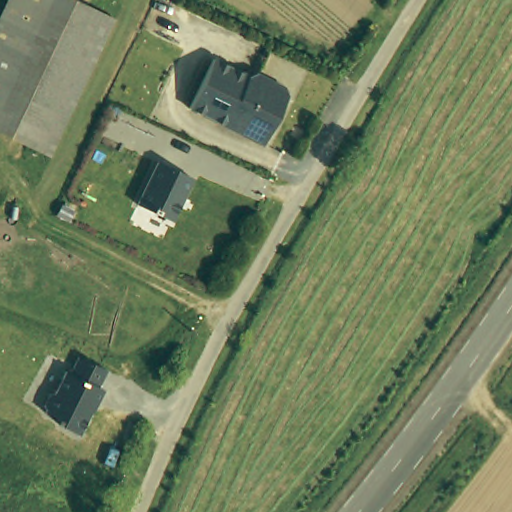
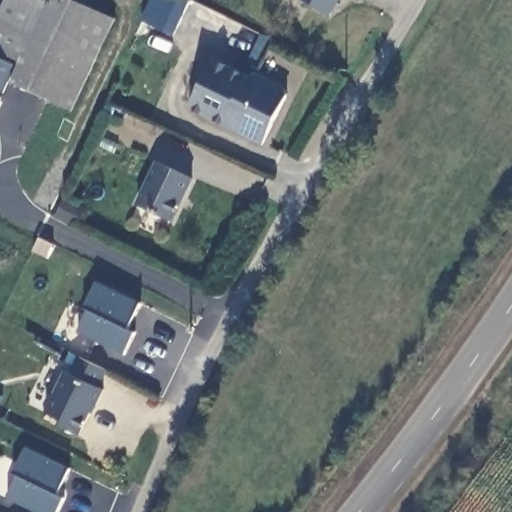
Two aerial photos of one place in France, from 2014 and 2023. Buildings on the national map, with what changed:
unchanged [(118,19),(53,156),(0,128),(0,18),(9,0),(78,0),(118,19)]
new [(332,15),(307,0),(340,0),(332,15)]
unchanged [(212,59),(247,75),(255,72),(284,85),(289,97),(263,146),(190,109),(212,59)]
unchanged [(193,179),(173,221),(136,205),(156,161),(193,179)]
new [(88,310),(84,308),(97,281),(140,302),(127,329),(134,332),(125,354),(78,331),(88,310)]
unchanged [(106,370),(98,388),(104,391),(81,436),(58,427),(61,419),(45,412),(46,409),(44,405),(48,395),(54,393),(65,372),(69,374),(79,357),(106,370)]
new [(13,473),(26,446),(69,467),(56,494),(64,497),(57,512),(40,512),(7,496),(17,474),(13,473)]

